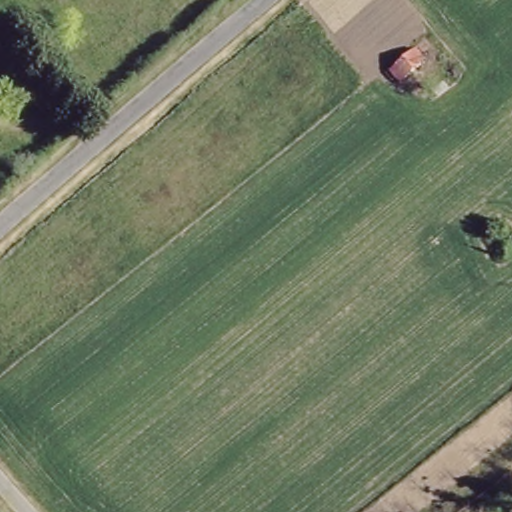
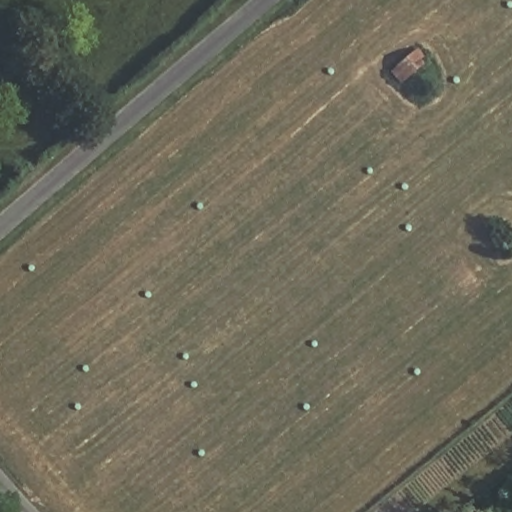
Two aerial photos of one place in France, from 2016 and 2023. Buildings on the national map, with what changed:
unchanged [(417,49),(425,63),(399,82),(390,69),(417,49)]

